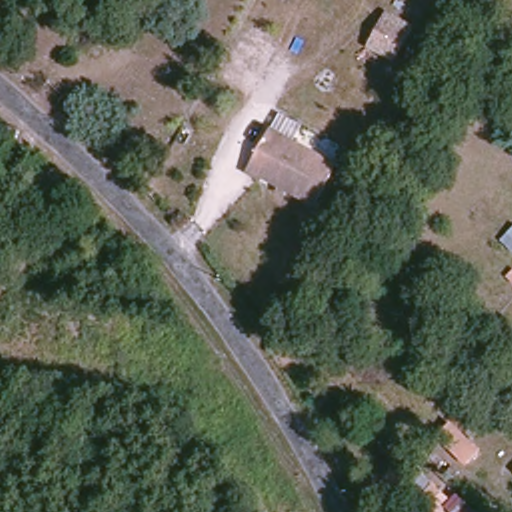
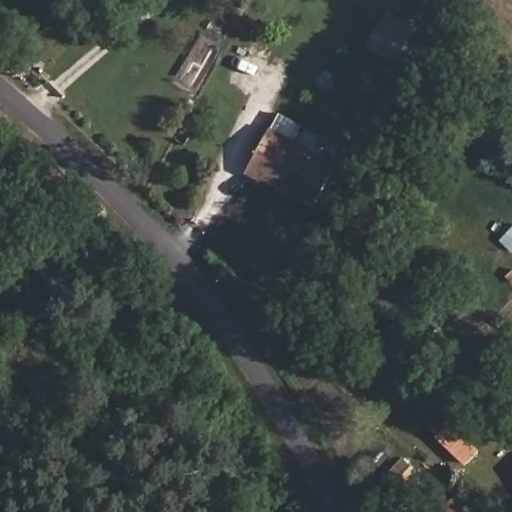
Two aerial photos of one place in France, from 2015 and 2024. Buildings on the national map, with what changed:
unchanged [(368,49),(381,25),(386,17),(410,30),(407,37),(392,62),(368,49)]
unchanged [(332,160),(312,204),(247,171),(272,124),(332,160)]
unchanged [(512,229),(512,239),(507,234),(512,229)]
unchanged [(450,423),(484,453),(470,468),(436,439),(450,423)]
unchanged [(420,512),(396,490),(410,474),(450,512),(420,512)]

